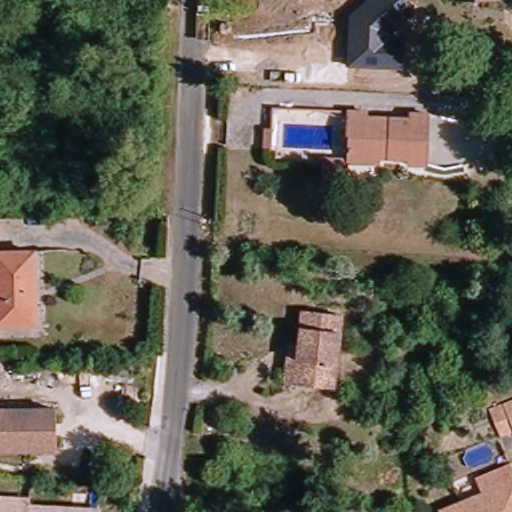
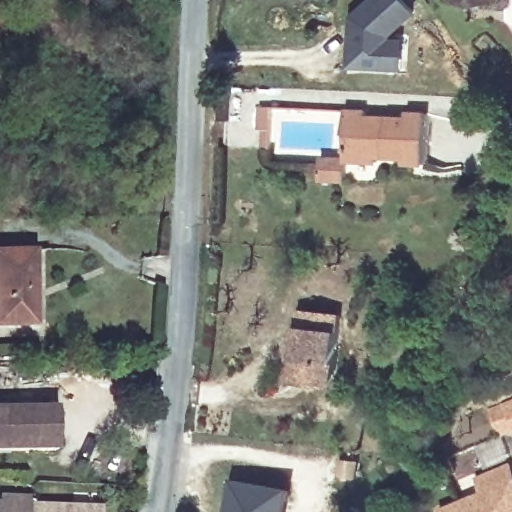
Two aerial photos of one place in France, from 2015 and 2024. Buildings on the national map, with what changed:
unchanged [(388,36),(415,37),(413,70),(345,65),(347,17),(366,0),(405,0),(416,12),(388,36)]
unchanged [(484,0),(507,0),(507,1),(484,0)]
unchanged [(355,130),(357,107),(378,108),(378,115),(420,116),(421,110),(440,111),(437,161),(419,161),(418,156),(390,154),(389,158),(359,157),(360,131),(355,130)]
unchanged [(331,174),(332,156),(359,157),(357,175),(331,174)]
unchanged [(41,324),(3,324),(6,252),(45,254),(41,324)]
unchanged [(297,346),(307,346),(313,310),(351,315),(340,387),(302,382),(291,381),(297,346)]
unchanged [(504,405),(512,401),(512,425),(504,405)]
unchanged [(0,453),(0,411),(55,407),(58,449),(0,453)]
unchanged [(482,495),(476,481),(511,467),(512,471),(512,512),(439,512),(482,495)]
new [(233,483),(287,492),(283,512),(229,512),(233,483)]
unchanged [(96,511),(96,512),(9,512),(96,511)]

